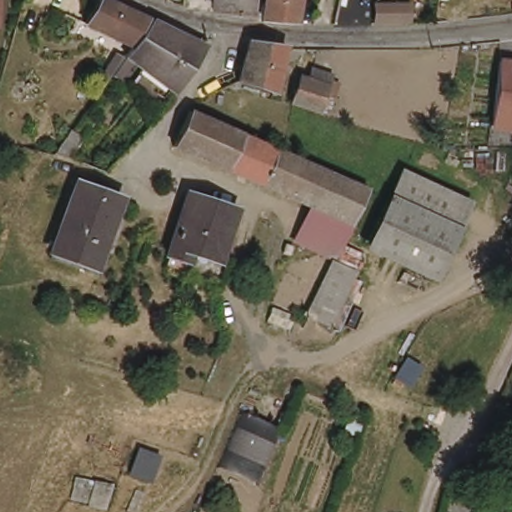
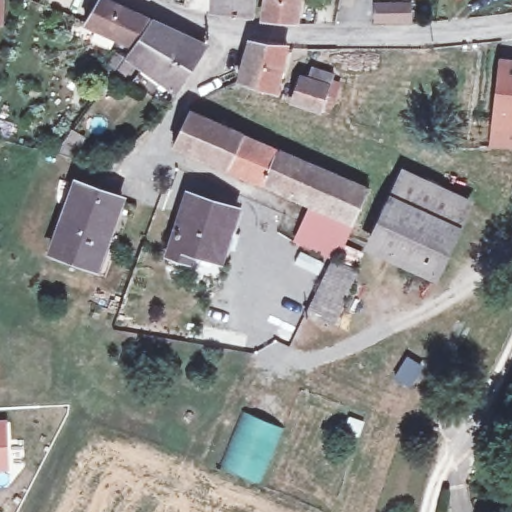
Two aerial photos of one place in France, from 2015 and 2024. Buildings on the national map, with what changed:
unchanged [(247,14),(228,10),(213,7),(213,0),(249,0),(247,14)]
unchanged [(291,24),(276,22),(263,21),(266,0),(297,0),(291,24)]
unchanged [(127,15),(152,24),(133,53),(85,33),(100,4),(127,15)]
unchanged [(382,9),(414,8),(414,25),(382,26),(382,9)]
unchanged [(133,53),(152,24),(193,40),(206,45),(182,95),(120,71),(113,82),(108,79),(119,62),(124,66),(133,53)]
unchanged [(247,44),(284,49),(284,51),(274,93),(238,87),(247,44)]
unchanged [(512,137),(492,135),(501,60),(512,61),(512,137)]
unchanged [(291,104),(296,88),(305,90),(309,79),(329,85),(320,112),(291,104)]
unchanged [(183,112),(236,138),(221,175),(168,152),(170,146),(183,113),(183,112)]
unchanged [(249,144),(293,164),(283,187),(277,200),(221,175),(236,138),(249,144)]
unchanged [(364,196),(350,223),(346,232),(309,215),(298,210),(277,200),(283,187),(293,164),(364,196)]
unchanged [(404,175),(466,202),(453,231),(392,202),(404,175)]
unchanged [(116,198),(95,272),(53,260),(73,185),(116,198)]
unchanged [(221,276),(164,257),(168,247),(189,186),(239,206),(219,255),(229,258),(221,276)]
unchanged [(453,231),(431,278),(370,250),(392,202),(453,231)]
unchanged [(306,257),(293,250),(309,215),(346,232),(327,267),(306,257)]
unchanged [(349,277),(324,332),(299,321),(327,267),(349,277)]
unchanged [(284,432),(263,481),(226,468),(248,417),(284,432)]
new [(0,471),(0,420),(8,420),(7,471),(0,471)]

